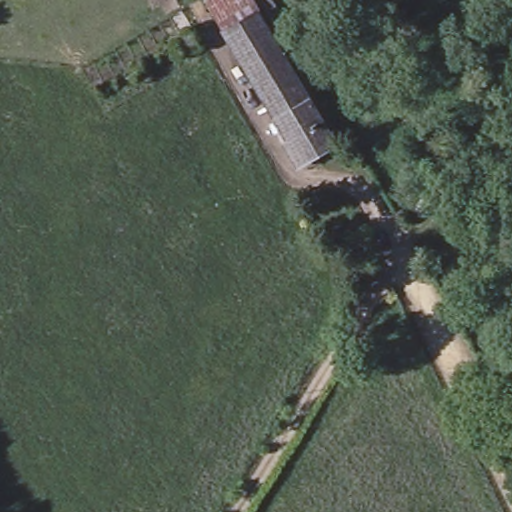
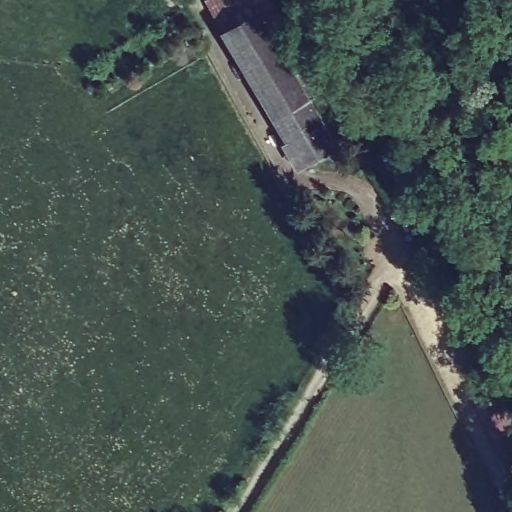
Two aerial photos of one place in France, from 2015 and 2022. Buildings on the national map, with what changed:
unchanged [(215,0),(244,0),(252,13),(217,33),(202,7),(215,0)]
unchanged [(252,13),(304,99),(270,119),(217,33),(252,13)]
unchanged [(304,99),(328,142),(298,162),(270,119),(304,99)]

